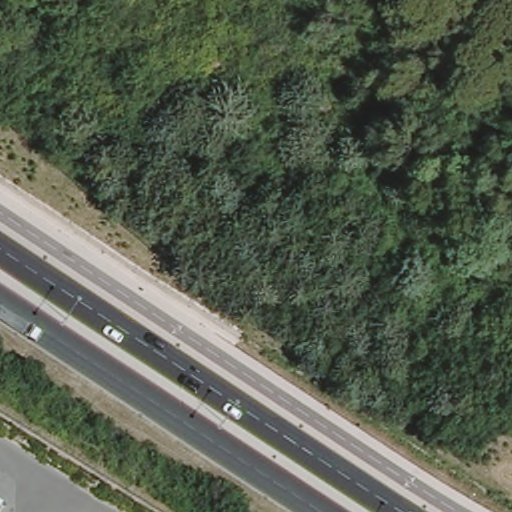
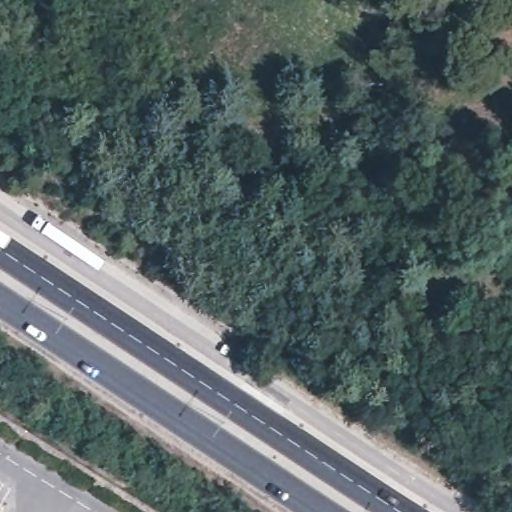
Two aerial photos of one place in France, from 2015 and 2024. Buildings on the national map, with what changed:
[]

